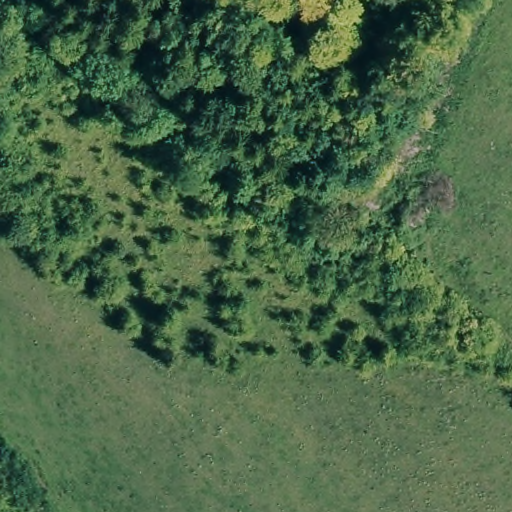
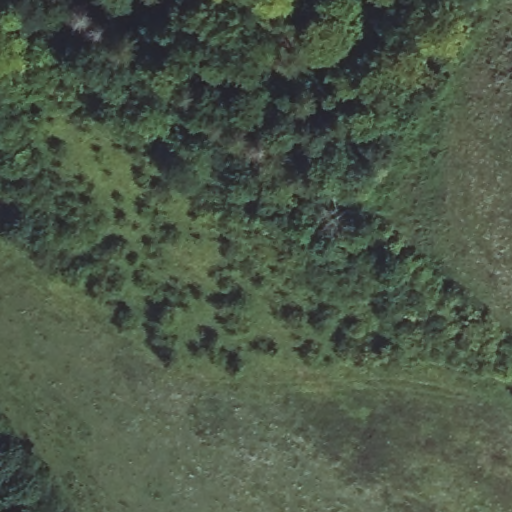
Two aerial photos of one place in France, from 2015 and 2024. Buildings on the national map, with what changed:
[]

